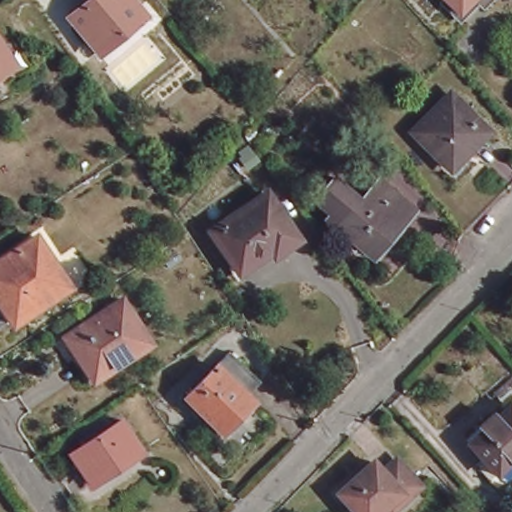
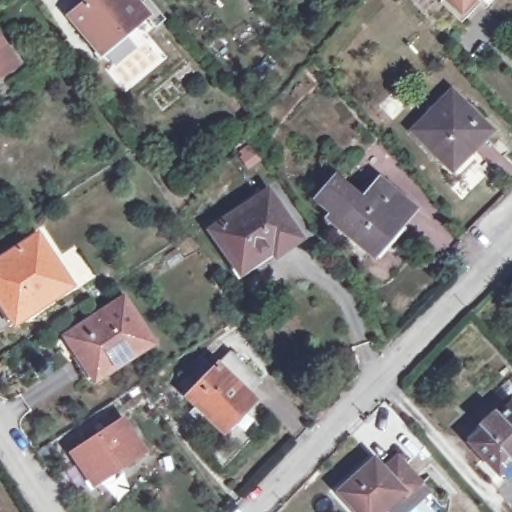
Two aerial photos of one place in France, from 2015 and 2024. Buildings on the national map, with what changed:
unchanged [(98,51),(70,16),(90,0),(134,0),(145,14),(98,51)]
unchanged [(449,0),(469,0),(459,10),(449,0)]
unchanged [(11,61),(0,68),(0,45),(11,61)]
unchanged [(450,92),(487,130),(471,145),(481,156),(455,182),(445,172),(449,167),(412,130),(450,92)]
unchanged [(261,134),(267,141),(259,148),(253,140),(261,134)]
unchanged [(244,135),(248,140),(265,162),(255,170),(236,144),(244,135)]
unchanged [(322,197),(338,178),(364,200),(382,180),(416,209),(392,237),(377,255),(360,240),(332,217),(337,211),(322,197)]
unchanged [(235,263),(212,230),(267,192),(299,237),(275,252),(272,247),(239,270),(235,263)]
unchanged [(0,311),(0,260),(37,235),(69,286),(22,318),(10,326),(0,311)]
unchanged [(90,372),(78,355),(65,335),(122,298),(146,335),(151,343),(123,360),(104,373),(94,380),(90,372)]
unchanged [(236,424),(220,441),(182,405),(211,374),(225,360),(255,389),(242,403),(249,410),(236,424)]
unchanged [(497,475),(470,445),(482,432),(478,428),(495,413),(499,417),(512,405),(512,475),(503,482),(497,475)]
unchanged [(143,450),(110,472),(92,484),(88,479),(72,453),(122,419),(143,450)]
unchanged [(382,470),(395,459),(418,485),(404,498),(399,493),(378,512),(357,512),(339,491),(372,460),(382,470)]

